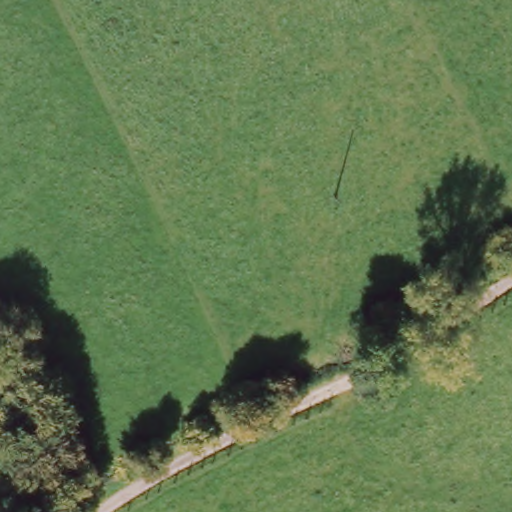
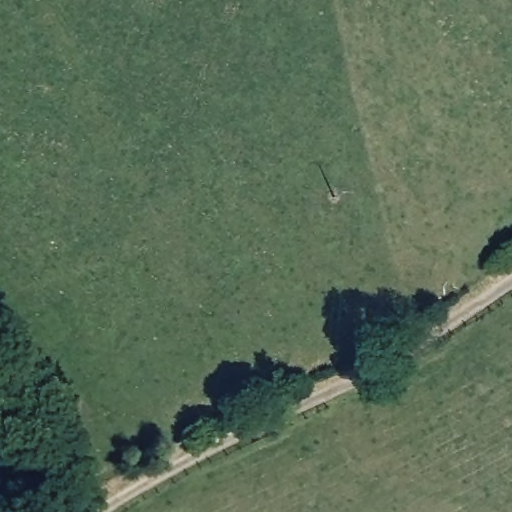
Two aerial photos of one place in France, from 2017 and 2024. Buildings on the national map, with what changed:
[]

